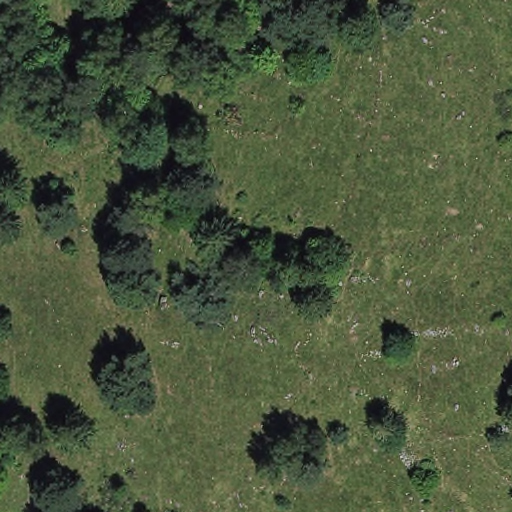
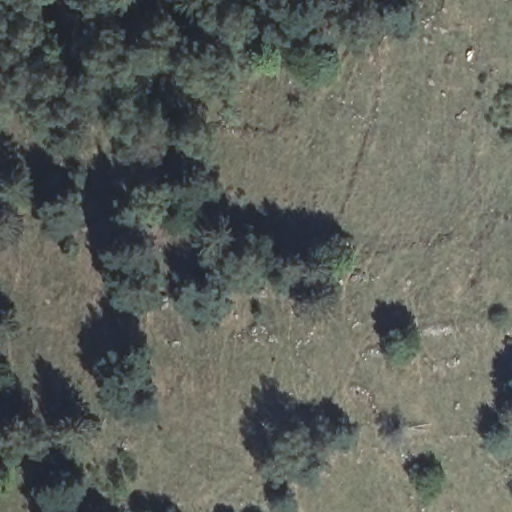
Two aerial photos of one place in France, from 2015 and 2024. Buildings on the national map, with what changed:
[]

